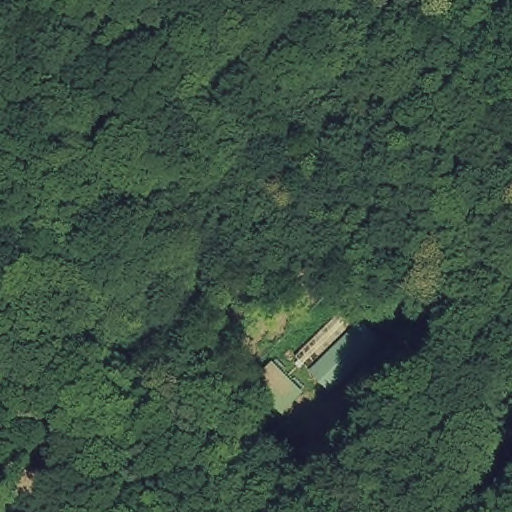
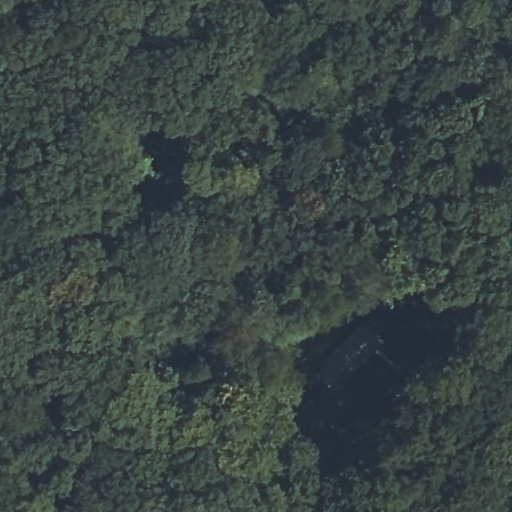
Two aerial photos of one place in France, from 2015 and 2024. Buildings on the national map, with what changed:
unchanged [(325,400),(302,376),(359,315),(381,341),(325,400)]

